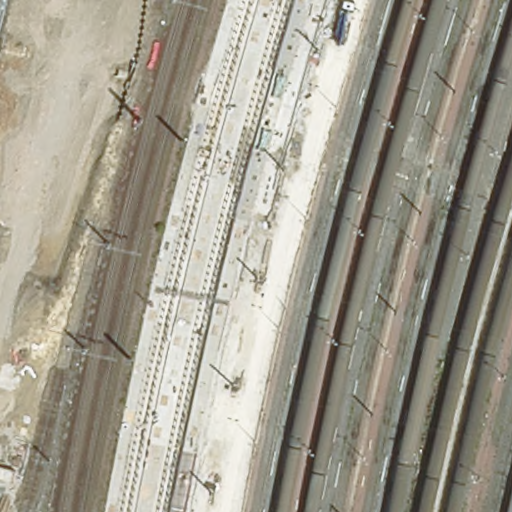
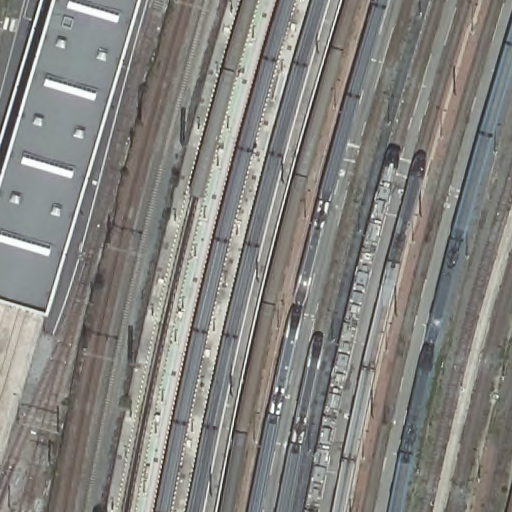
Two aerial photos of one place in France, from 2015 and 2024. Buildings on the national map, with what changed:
new [(0,297),(0,173),(51,0),(138,0),(46,310),(0,297)]

